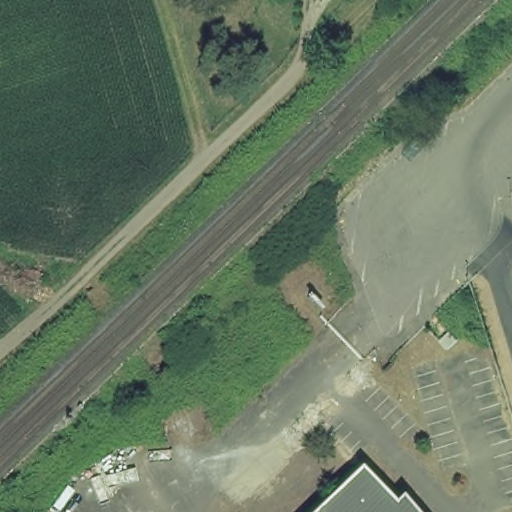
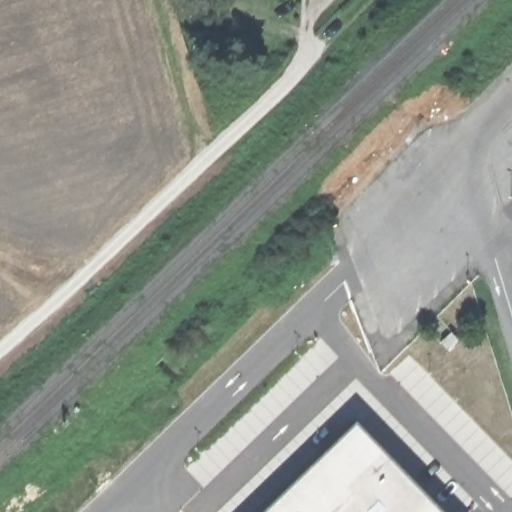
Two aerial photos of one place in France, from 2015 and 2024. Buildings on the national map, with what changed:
new [(452,333),(459,340),(449,349),(442,342),(452,333)]
new [(350,419),(439,512),(257,512),(350,419)]
demolished [(360,465),(406,512),(312,512),(360,465)]

